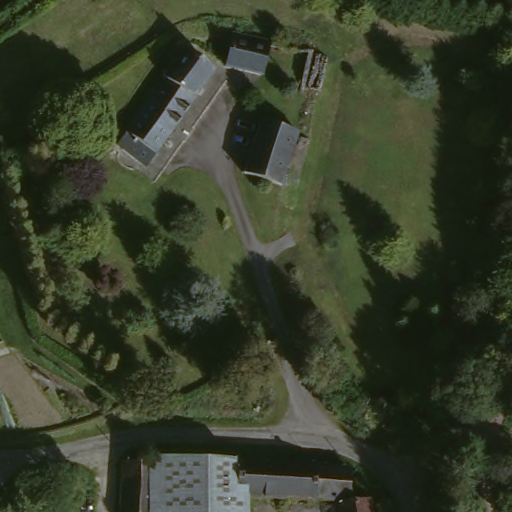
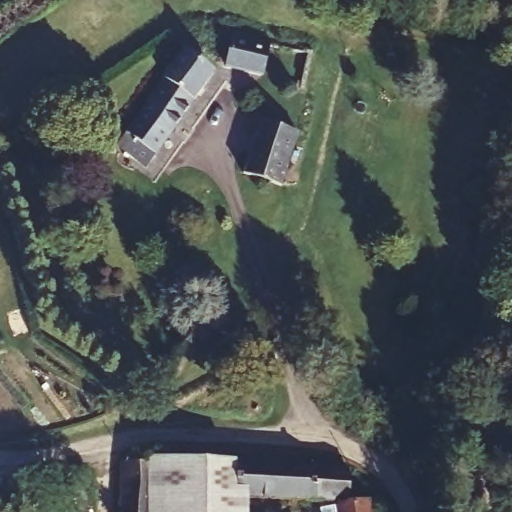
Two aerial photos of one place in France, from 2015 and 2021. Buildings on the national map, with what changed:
unchanged [(274,36),(269,70),(231,65),(236,31),(274,36)]
unchanged [(219,71),(157,167),(132,149),(140,137),(135,132),(193,53),(219,71)]
unchanged [(287,185),(252,172),(269,120),(305,133),(287,185)]
unchanged [(257,493),(258,512),(165,512),(167,459),(167,450),(256,454),(256,493),(257,493)]
unchanged [(362,494),(257,493),(256,493),(256,454),(360,460),(362,494)]
unchanged [(132,512),(134,459),(167,459),(165,512),(132,512)]
unchanged [(350,512),(347,499),(383,493),(387,512),(350,512)]
unchanged [(68,506),(69,512),(34,512),(33,508),(68,506)]

